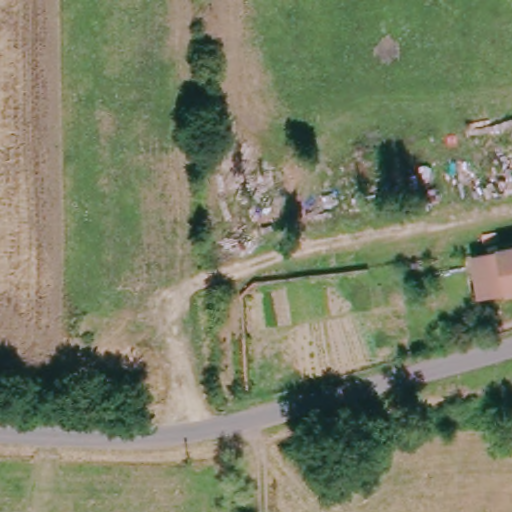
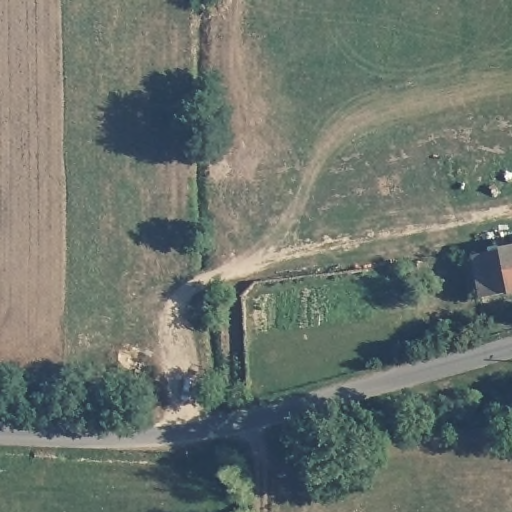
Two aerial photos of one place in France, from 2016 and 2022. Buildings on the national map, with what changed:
unchanged [(473,293),(466,252),(512,245),(512,288),(473,293)]

